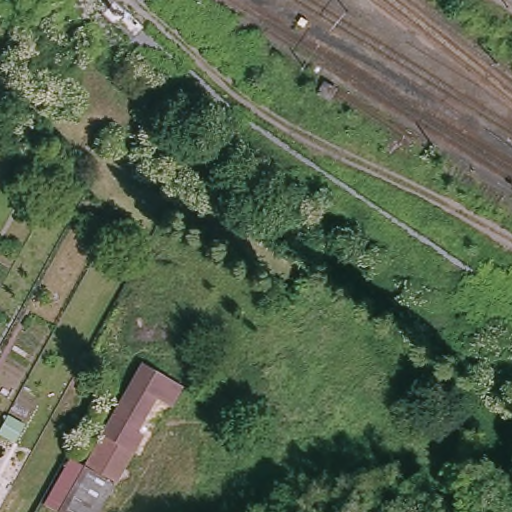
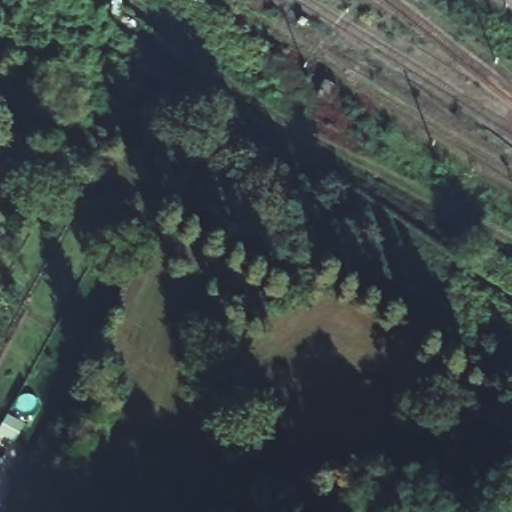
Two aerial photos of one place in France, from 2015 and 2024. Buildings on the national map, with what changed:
demolished [(97,433),(137,360),(175,381),(164,402),(149,393),(131,427),(137,430),(127,449),(97,433)]
demolished [(79,466),(90,446),(120,462),(93,512),(52,512),(39,505),(64,458),(79,466)]

